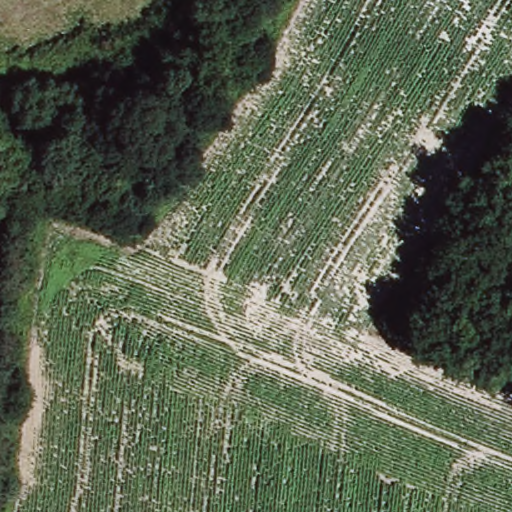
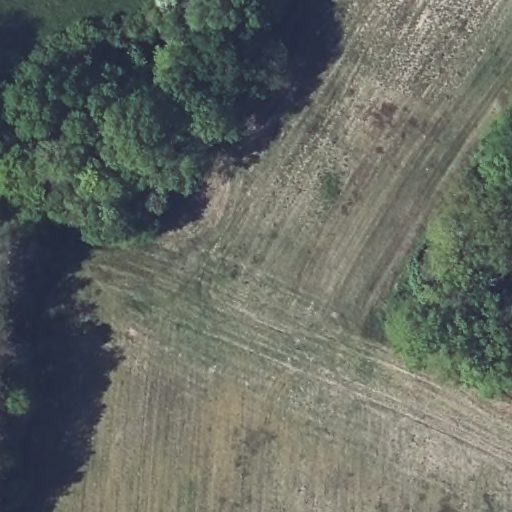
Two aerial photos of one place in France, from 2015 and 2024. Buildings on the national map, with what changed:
unchanged [(390,278),(396,259),(425,268),(418,288),(390,278)]

